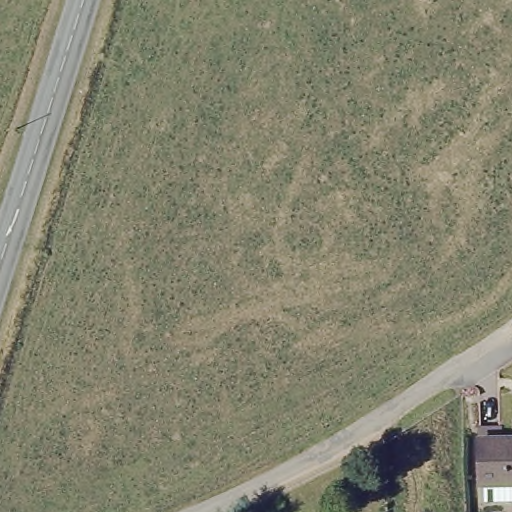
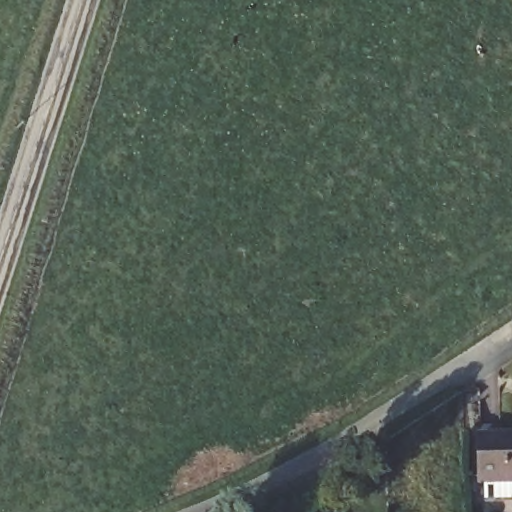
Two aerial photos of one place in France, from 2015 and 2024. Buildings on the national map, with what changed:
unchanged [(512,492),(480,492),(478,443),(512,443),(512,492)]

